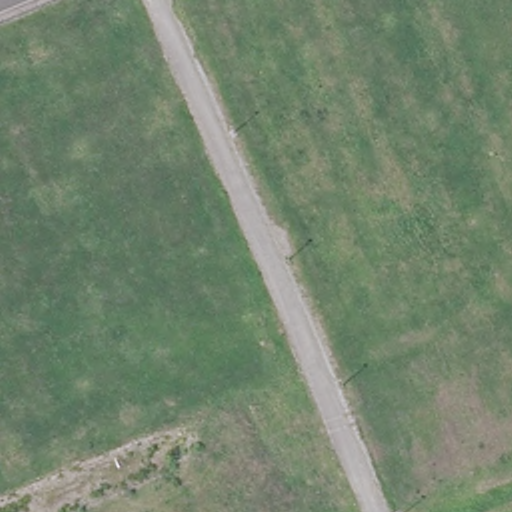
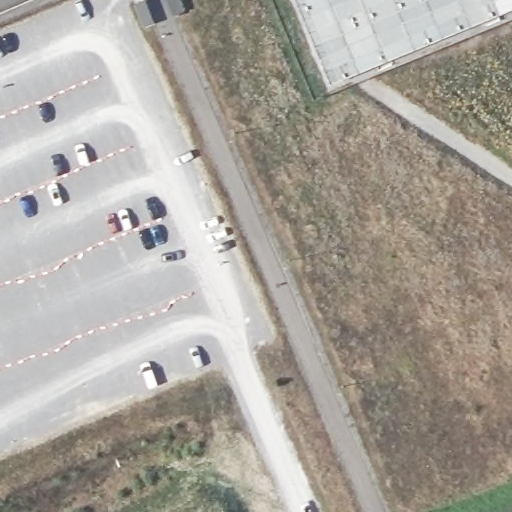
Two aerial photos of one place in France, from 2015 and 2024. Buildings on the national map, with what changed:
new [(357,72),(342,34),(328,40),(333,49),(324,54),(326,59),(323,60),(296,0),(512,0),(512,9),(357,72)]
new [(329,83),(321,61),(323,60),(326,59),(324,54),(333,49),(328,40),(342,34),(357,72),(329,83)]

